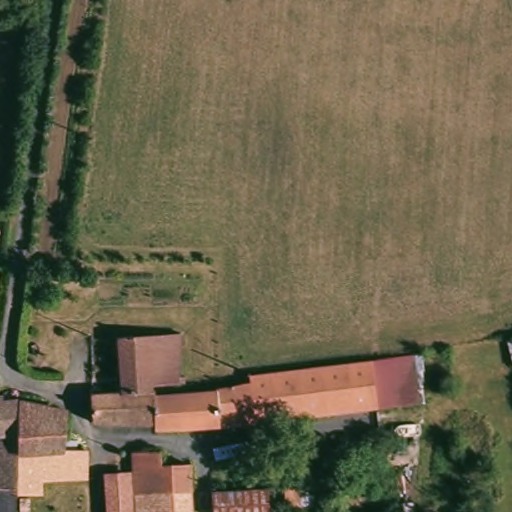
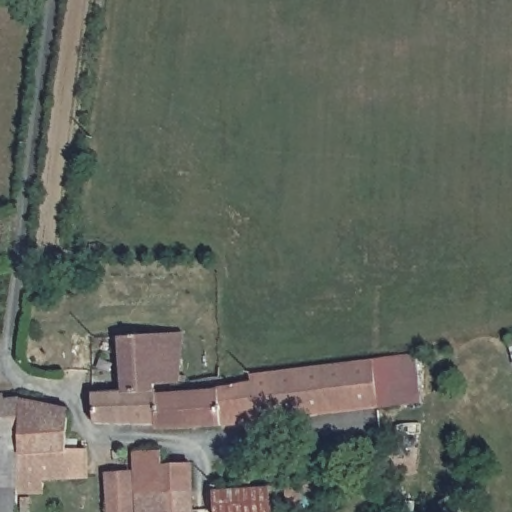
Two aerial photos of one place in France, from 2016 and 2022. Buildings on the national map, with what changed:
unchanged [(99,391),(125,388),(122,335),(156,332),(186,329),(184,359),(183,380),(179,381),(160,384),(160,389),(160,391),(160,398),(161,420),(102,418),(99,391)]
unchanged [(512,337),(512,348),(511,337),(512,337)]
unchanged [(385,406),(262,421),(255,419),(198,424),(162,428),(161,422),(161,420),(160,398),(160,391),(217,388),(255,379),(256,371),(287,367),(290,367),(300,365),(311,364),(312,364),(313,363),(339,360),(341,359),(344,359),(378,354),(385,406)]
unchanged [(0,454),(7,440),(4,438),(0,438),(0,403),(17,401),(19,401),(26,401),(25,413),(24,450),(24,457),(24,468),(24,487),(23,494),(22,512),(0,512),(0,454)]
unchanged [(25,413),(26,401),(55,408),(74,418),(71,451),(24,450),(25,413)]
unchanged [(196,488),(142,491),(141,449),(169,448),(169,461),(197,462),(197,488),(196,488)]
unchanged [(71,451),(91,451),(90,479),(49,482),(47,495),(23,494),(24,487),(24,468),(24,457),(24,450),(71,451)]
unchanged [(137,501),(137,512),(112,512),(109,474),(136,471),(136,488),(136,489),(136,491),(137,501)]
unchanged [(313,484),(312,495),(302,495),(302,501),(286,500),(288,483),(313,484)]
unchanged [(142,491),(196,488),(197,488),(197,512),(144,512),(142,491)]
unchanged [(243,490),(268,490),(270,490),(271,512),(215,512),(214,492),(243,490)]
unchanged [(36,501),(36,512),(26,512),(25,501),(36,501)]

